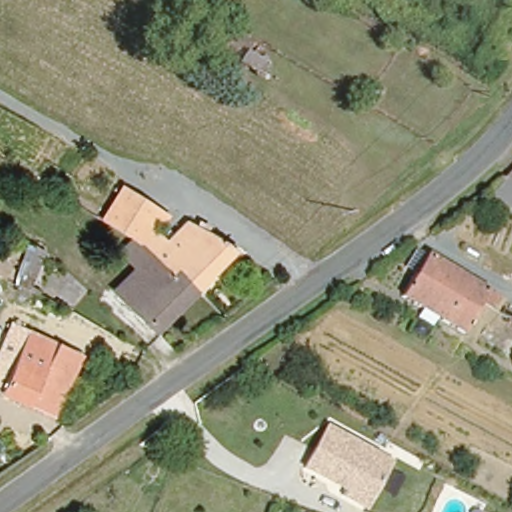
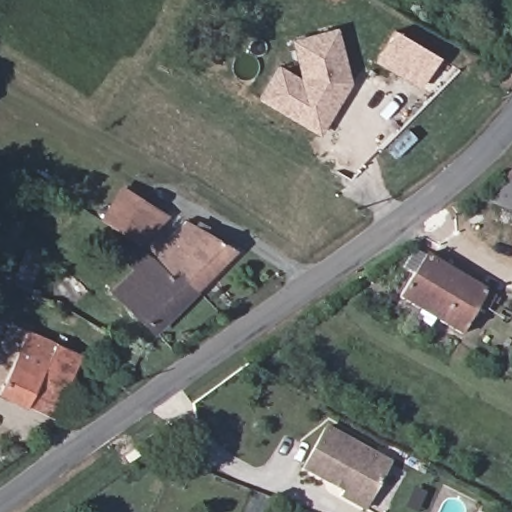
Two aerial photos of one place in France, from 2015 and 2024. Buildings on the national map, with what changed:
new [(291,40),(336,28),(350,84),(320,136),(257,98),(278,64),(300,78),(291,40)]
new [(393,29),(439,56),(420,89),(375,61),(393,29)]
unchanged [(512,176),(512,182),(507,181),(512,176)]
unchanged [(489,201),(499,187),(507,181),(512,182),(512,210),(489,201)]
unchanged [(95,219),(115,187),(160,213),(132,242),(130,240),(95,219)]
unchanged [(170,271),(166,275),(136,246),(155,227),(166,236),(186,215),(210,227),(234,252),(195,291),(170,271)]
unchanged [(153,333),(109,287),(129,265),(116,252),(130,240),(132,242),(136,246),(166,275),(170,271),(195,291),(153,333)]
unchanged [(26,290),(21,287),(21,285),(37,245),(49,250),(30,292),(26,290)]
unchanged [(508,296),(505,301),(497,297),(492,304),(482,299),(464,328),(402,294),(417,269),(405,262),(415,245),(428,252),(430,251),(508,296)]
unchanged [(0,401),(0,342),(14,314),(83,346),(49,421),(0,401)]
unchanged [(340,496),(343,489),(303,467),(326,425),(391,460),(365,509),(340,496)]

